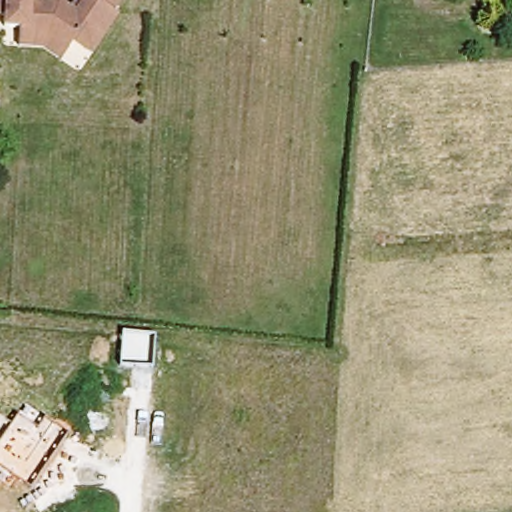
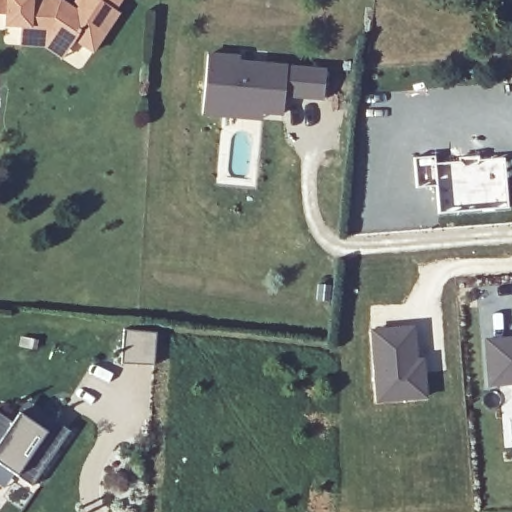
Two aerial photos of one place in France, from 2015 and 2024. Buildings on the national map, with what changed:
unchanged [(24,45),(12,45),(12,26),(0,26),(0,0),(55,0),(64,7),(69,0),(115,0),(107,11),(112,15),(84,53),(67,41),(63,46),(53,59),(37,45),(24,45)]
new [(237,59),(237,63),(325,71),(323,97),(283,93),(281,120),(204,114),(209,56),(237,59)]
new [(436,155),(436,160),(508,153),(512,206),(436,214),(433,187),(414,188),(412,156),(436,155)]
new [(415,324),(418,357),(425,356),(428,399),(375,404),(369,328),(415,324)]
unchanged [(155,334),(153,366),(122,364),(123,332),(155,334)]
new [(512,386),(486,388),(482,337),(512,335),(512,386)]
unchanged [(70,432),(34,485),(22,478),(15,487),(0,477),(0,417),(10,425),(25,403),(70,432)]

